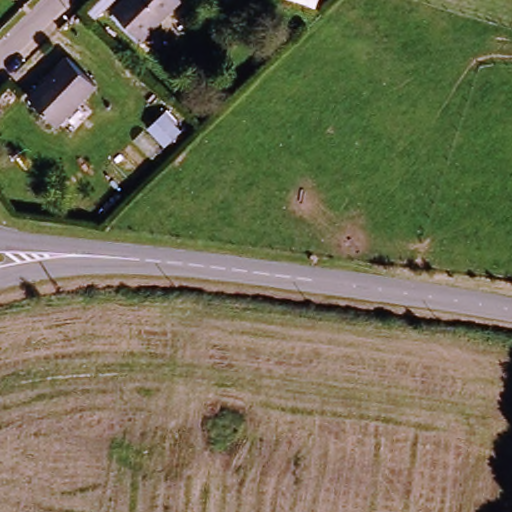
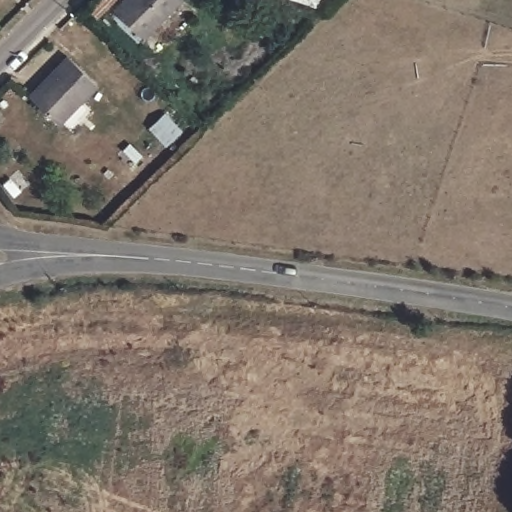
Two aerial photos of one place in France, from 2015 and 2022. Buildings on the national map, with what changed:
unchanged [(142,36),(116,11),(126,0),(177,0),(142,36)]
unchanged [(95,87),(62,124),(33,97),(67,61),(95,87)]
unchanged [(168,147),(150,129),(164,117),(181,135),(168,147)]

